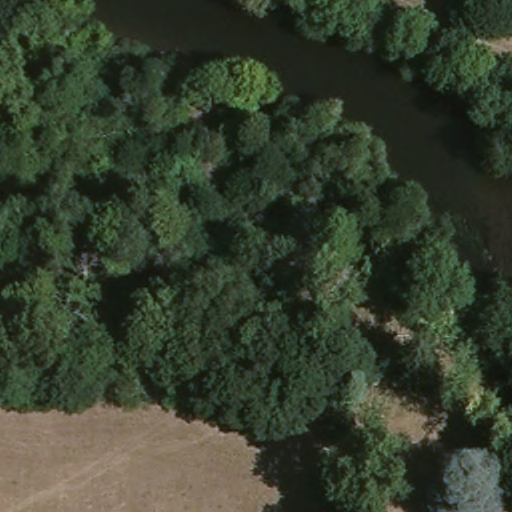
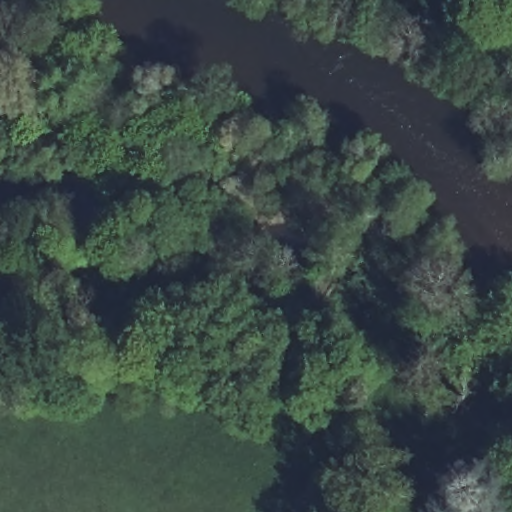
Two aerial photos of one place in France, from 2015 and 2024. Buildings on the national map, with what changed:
unchanged [(374,376),(358,375),(359,359),(375,360),(374,376)]

